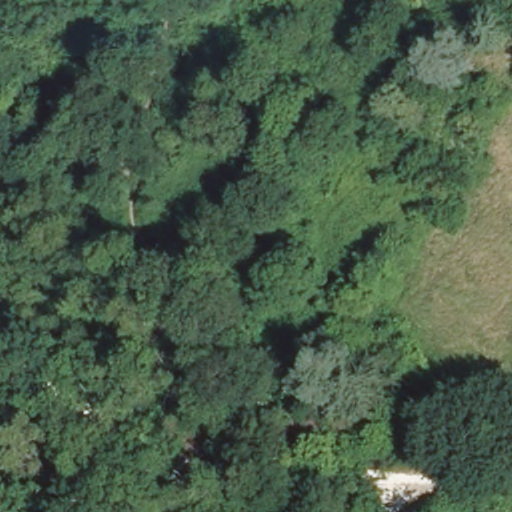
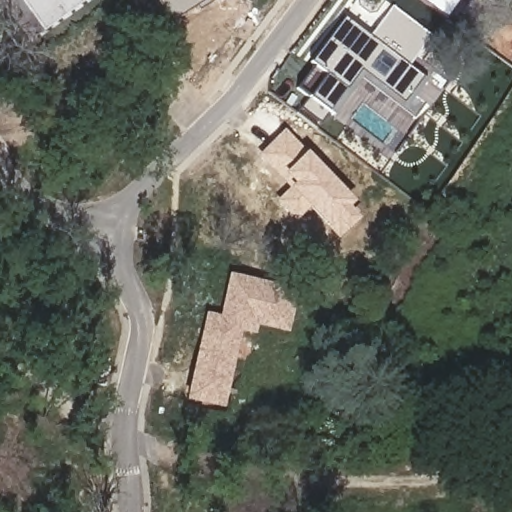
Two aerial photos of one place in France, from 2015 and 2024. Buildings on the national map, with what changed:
new [(9,0),(83,0),(36,35),(9,0)]
new [(197,10),(195,6),(169,22),(155,1),(157,0),(212,0),(197,10)]
new [(226,0),(223,1),(222,0),(226,0)]
new [(308,99),(310,97),(297,89),(315,66),(310,62),(345,17),(369,36),(392,5),(384,0),(460,0),(446,18),(445,16),(429,34),(432,36),(410,66),(428,80),(405,110),(362,77),(332,116),(330,114),(322,123),(301,107),(310,100),(308,99)]
new [(291,189),(290,187),(259,156),(286,129),(308,151),(356,202),(351,207),(360,219),(350,230),(340,240),(328,228),(310,209),(296,221),(277,201),(291,189)]
new [(204,313),(218,316),(226,274),(300,289),(290,333),(257,327),(255,335),(239,332),(223,408),(185,401),(204,313)]
unchanged [(293,449),(295,426),(366,434),(363,456),(293,449)]

